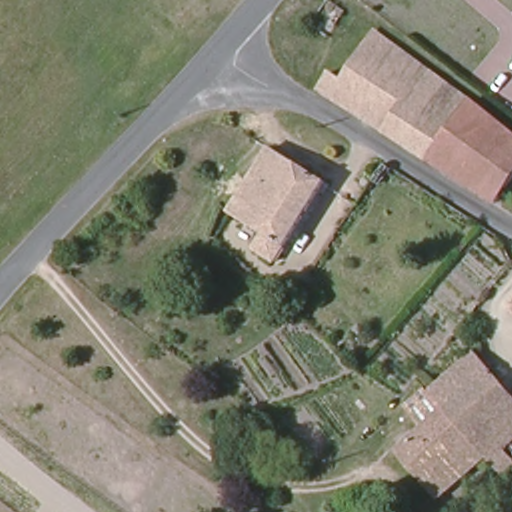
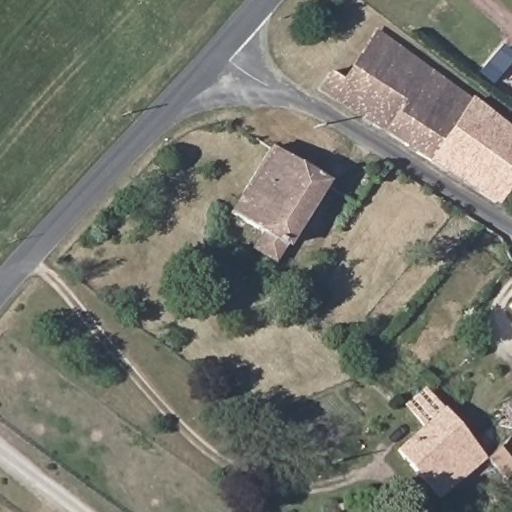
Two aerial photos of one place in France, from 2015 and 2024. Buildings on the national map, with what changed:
unchanged [(328,69),(341,76),(374,30),(465,92),(512,130),(512,180),(495,202),(315,89),(328,69)]
unchanged [(272,263),(250,249),(260,232),(232,215),(276,149),(327,182),(272,263)]
unchanged [(391,168),(377,185),(372,182),(387,165),(391,168)]
unchanged [(512,297),(512,308),(506,302),(512,297)]
unchanged [(453,422),(432,403),(424,396),(468,358),(477,368),(488,359),(512,387),(512,473),(511,474),(497,461),(453,422)]
unchanged [(449,501),(412,458),(453,422),(497,461),(449,501)]

